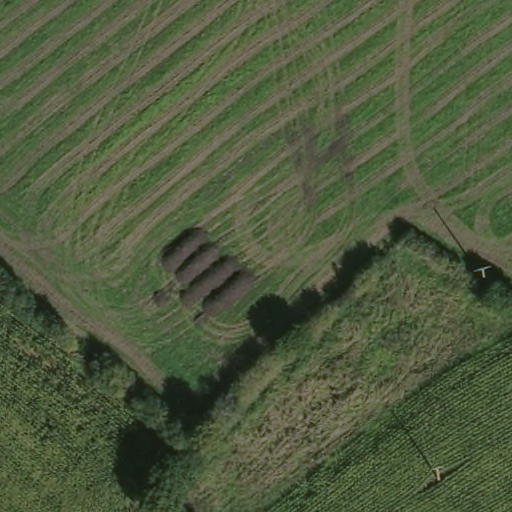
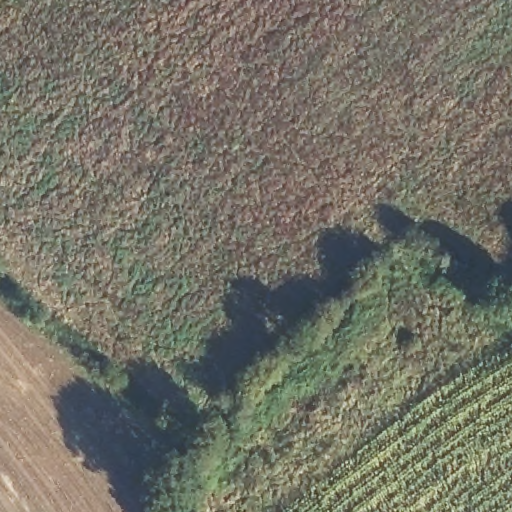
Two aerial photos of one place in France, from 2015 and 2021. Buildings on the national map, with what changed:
[]

